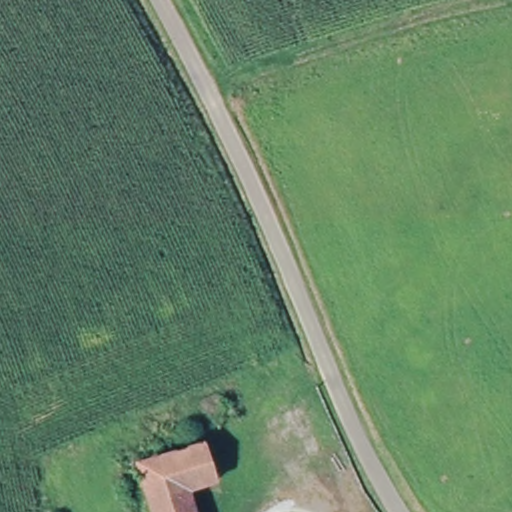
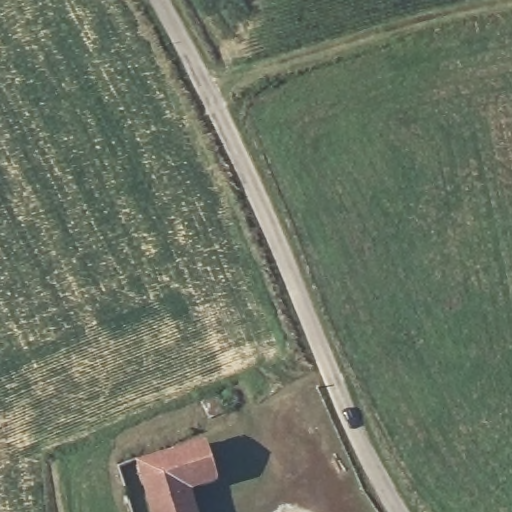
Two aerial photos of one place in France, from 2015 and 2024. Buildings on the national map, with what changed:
unchanged [(192,512),(152,512),(137,468),(198,444),(239,429),(245,450),(205,466),(212,483),(187,495),(192,512)]

